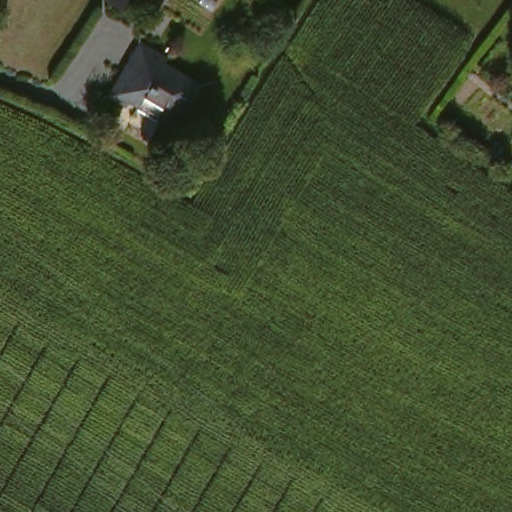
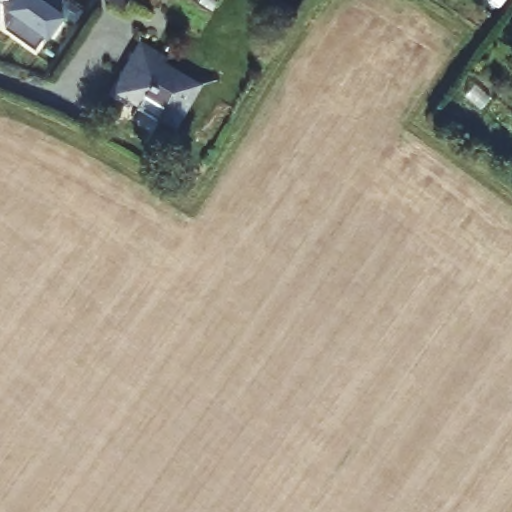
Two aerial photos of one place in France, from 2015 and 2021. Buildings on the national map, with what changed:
new [(66,16),(48,40),(45,38),(36,50),(7,29),(15,17),(7,11),(15,0),(68,0),(60,11),(66,16)]
unchanged [(206,81),(183,123),(138,100),(131,110),(114,100),(135,66),(161,82),(172,62),(206,81)]

